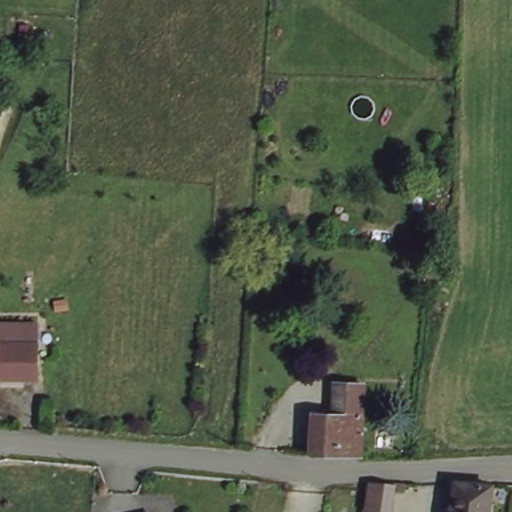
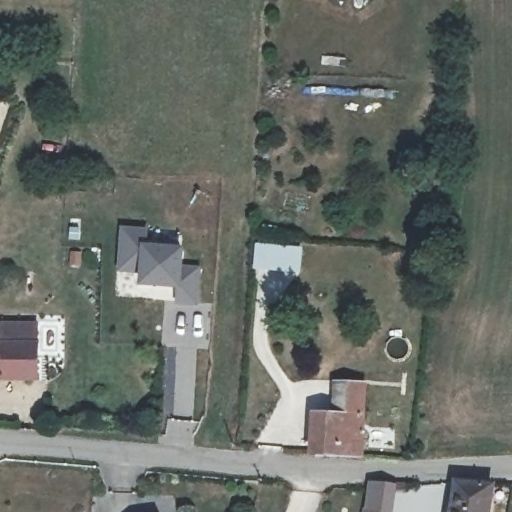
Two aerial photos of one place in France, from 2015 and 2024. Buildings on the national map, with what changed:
new [(173,304),(171,289),(138,287),(139,273),(115,272),(118,227),(146,229),(144,244),(182,246),(181,262),(198,265),(194,305),(173,304)]
new [(252,269),(254,243),(302,247),(300,273),(252,269)]
unchanged [(33,386),(0,382),(0,330),(38,334),(33,386)]
unchanged [(318,417),(347,419),(349,388),(366,389),(361,459),(316,454),(318,417)]
unchanged [(464,485),(497,489),(493,512),(459,512),(464,485)]
unchanged [(365,487),(408,490),(407,499),(398,498),(394,512),(360,512),(365,487)]

